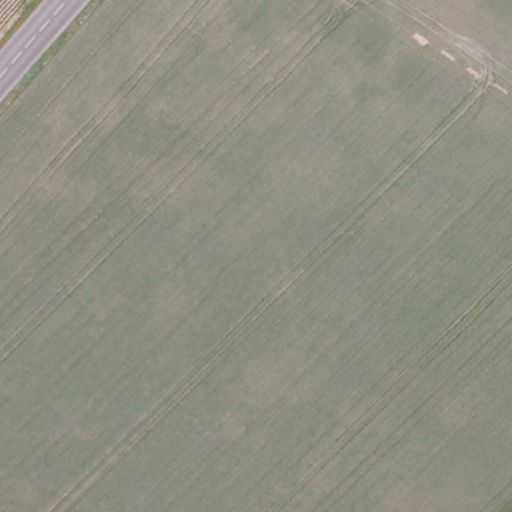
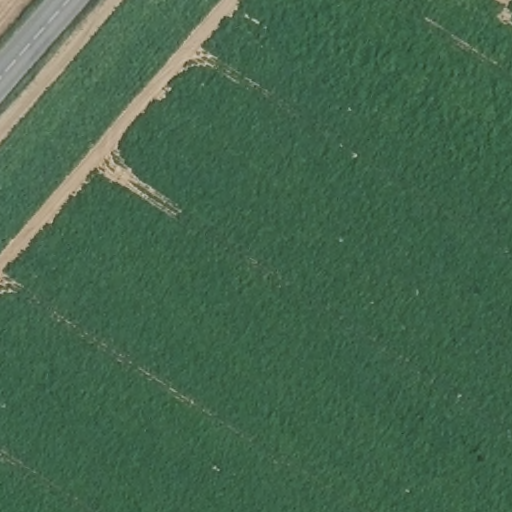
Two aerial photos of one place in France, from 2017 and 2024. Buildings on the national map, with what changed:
[]

